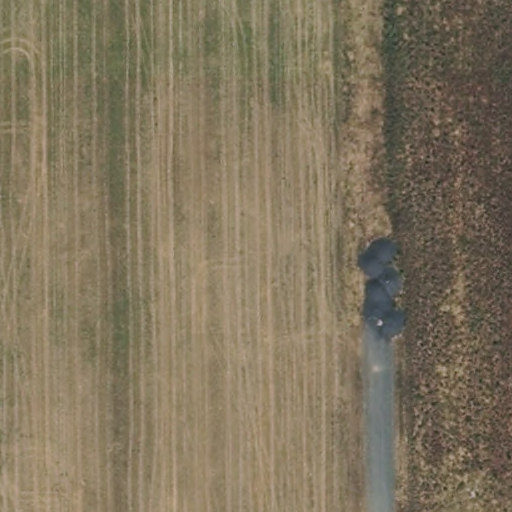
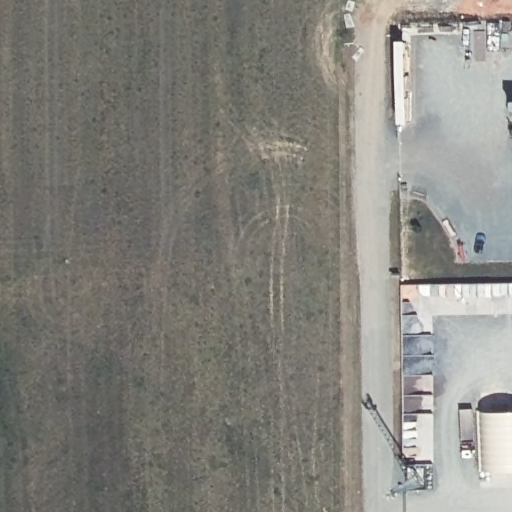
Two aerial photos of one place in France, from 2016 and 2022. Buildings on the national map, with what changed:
new [(512,410),(512,470),(480,469),(479,411),(512,410)]

